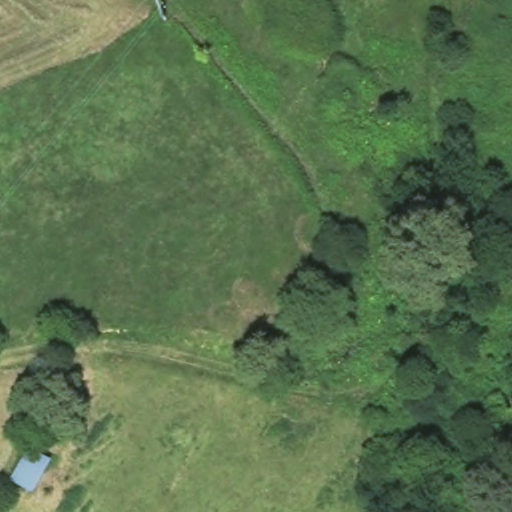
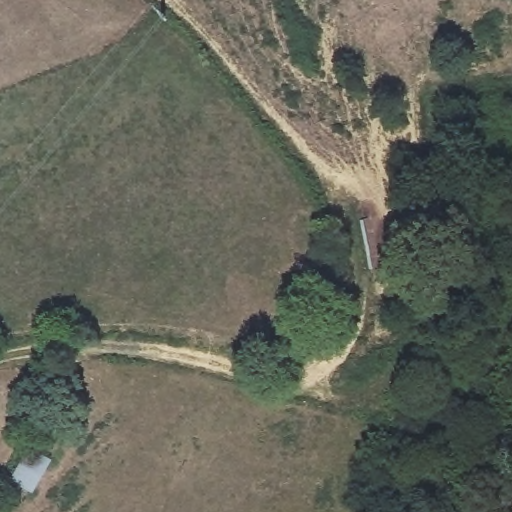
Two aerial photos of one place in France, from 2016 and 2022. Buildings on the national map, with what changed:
unchanged [(31,440),(54,452),(34,490),(6,478),(31,440)]

